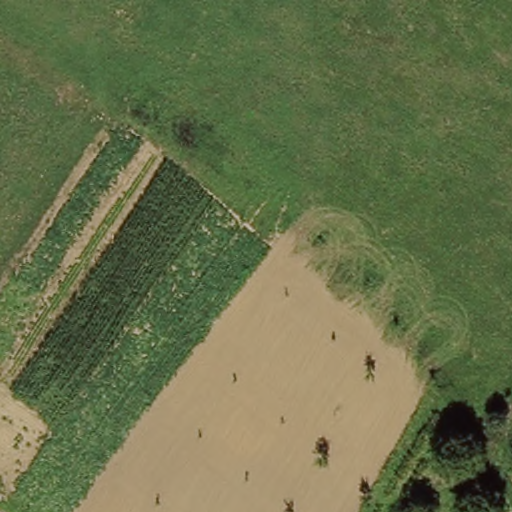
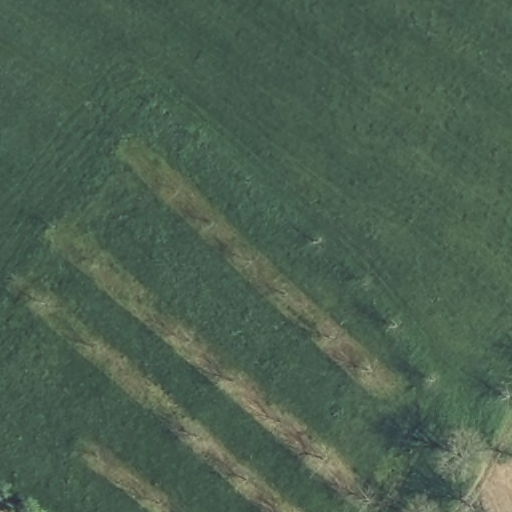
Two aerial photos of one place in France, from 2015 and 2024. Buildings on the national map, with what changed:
[]

